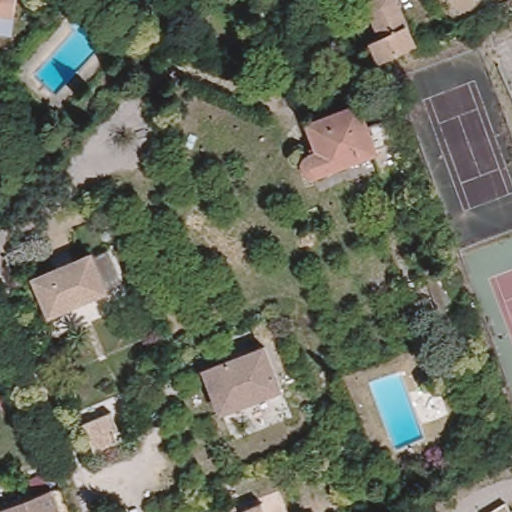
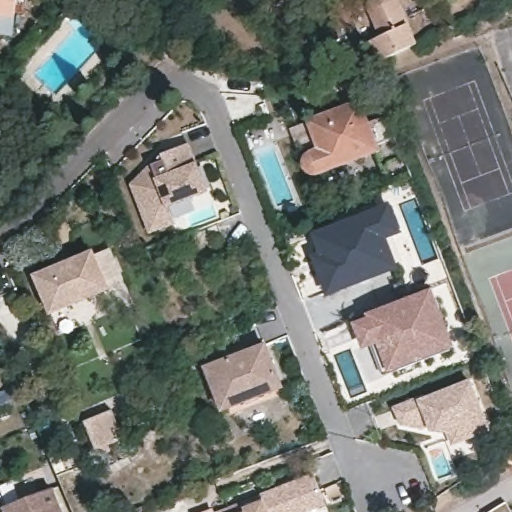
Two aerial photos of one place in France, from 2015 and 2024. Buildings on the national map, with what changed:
unchanged [(19,15),(1,14),(0,19),(0,0),(21,0),(19,15)]
unchanged [(421,40),(386,57),(377,36),(387,32),(375,9),(374,5),(374,1),(374,0),(401,0),(421,40)]
unchanged [(2,80),(0,81),(0,78),(2,80)]
unchanged [(405,156),(383,163),(377,149),(317,172),(315,172),(313,171),(312,170),(310,169),(309,168),(307,167),(306,166),(306,164),(305,161),(304,159),(304,155),(305,153),(305,152),(306,151),(308,150),(309,149),(312,148),(318,146),(308,118),(361,98),(371,119),(388,112),(405,156)]
new [(150,233),(132,183),(149,163),(161,154),(189,142),(209,191),(169,204),(175,224),(150,233)]
new [(312,257),(319,254),(312,234),(390,204),(401,233),(387,239),(398,271),(327,296),(312,257)]
unchanged [(91,252),(107,289),(49,314),(33,277),(91,252)]
demolished [(480,356),(459,364),(423,273),(445,264),(480,356)]
new [(455,347),(388,373),(377,344),(362,349),(352,323),(367,319),(366,314),(432,289),(455,347)]
unchanged [(264,344),(281,387),(222,409),(205,368),(264,344)]
new [(490,431),(455,446),(449,432),(441,434),(430,430),(421,430),(401,426),(394,408),(471,379),(490,431)]
unchanged [(89,418),(117,407),(129,433),(100,445),(89,418)]
unchanged [(508,465),(503,454),(512,448),(512,463),(508,465)]
unchanged [(56,484),(67,512),(11,512),(7,503),(56,484)]
unchanged [(511,498),(512,500),(512,512),(486,512),(490,510),(511,498)]
unchanged [(228,512),(243,506),(245,512),(264,505),(266,512),(228,512)]

